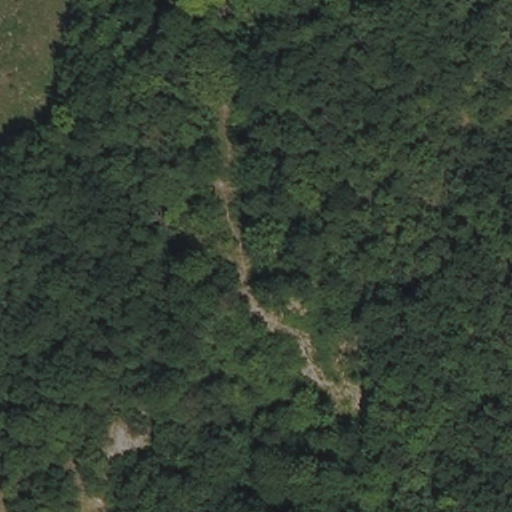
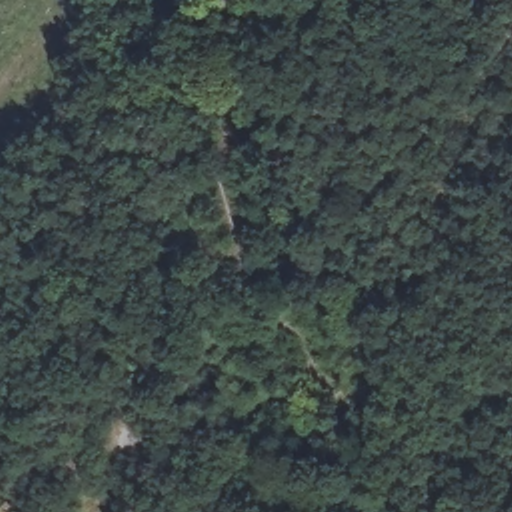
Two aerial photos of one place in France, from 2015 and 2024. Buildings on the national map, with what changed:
unchanged [(265,0),(268,55),(246,57),(243,0),(265,0)]
unchanged [(307,270),(287,275),(282,252),(303,248),(307,270)]
unchanged [(261,310),(282,303),(308,352),(327,388),(305,399),(288,365),(261,310)]
unchanged [(400,468),(380,468),(380,446),(399,445),(400,468)]

